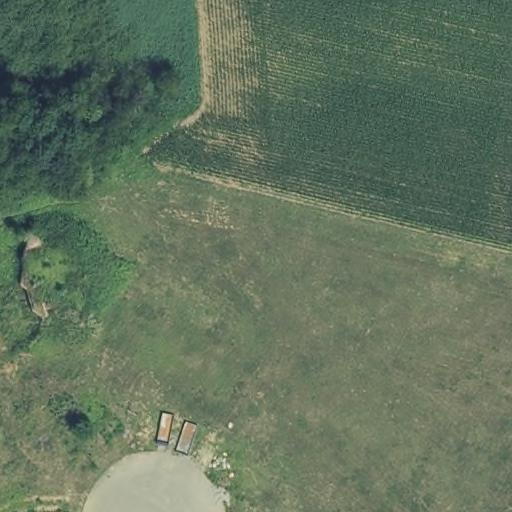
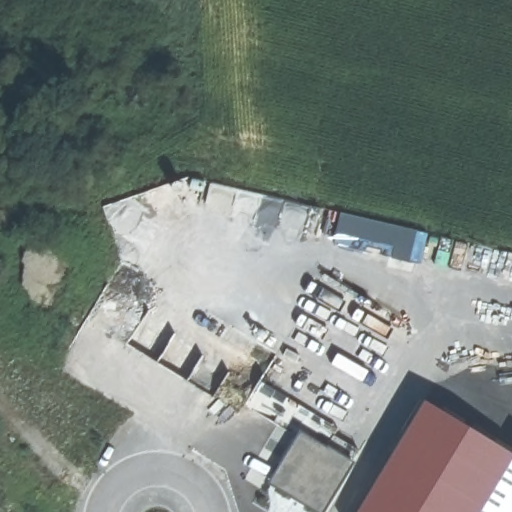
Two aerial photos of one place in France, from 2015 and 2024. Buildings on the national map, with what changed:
new [(341,215),(429,234),(422,263),(334,245),(341,215)]
unchanged [(69,268),(34,321),(21,265),(24,232),(69,268)]
new [(462,421),(512,452),(512,457),(480,512),(357,512),(423,400),(462,421)]
new [(355,462),(325,512),(315,512),(269,484),(300,430),(355,462)]
new [(512,512),(480,512),(512,457),(512,512)]

